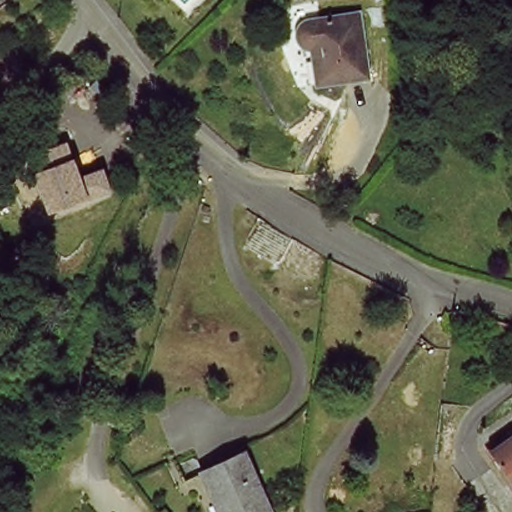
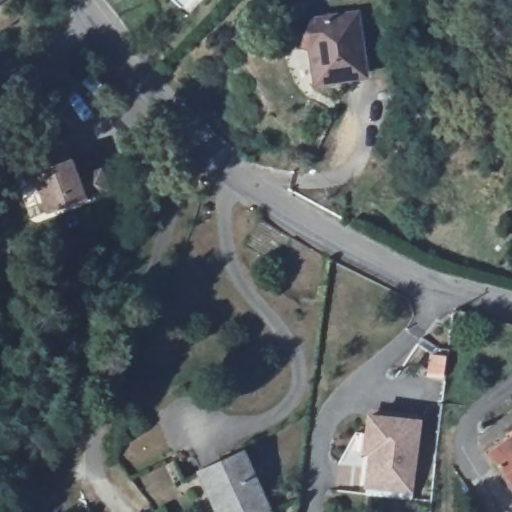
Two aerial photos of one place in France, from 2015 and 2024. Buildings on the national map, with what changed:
unchanged [(318,46),(316,46),(315,46),(315,45),(314,45),(313,45),(313,44),(312,44),(311,43),(311,42),(310,42),(309,41),(308,40),(308,39),(307,38),(307,37),(307,36),(306,35),(306,34),(306,32),(307,30),(307,28),(308,27),(308,26),(309,25),(310,25),(310,24),(311,24),(312,23),(313,22),(314,22),(315,21),(318,20),(367,14),(376,76),(327,83),(323,57),(325,57),(324,46),(318,46)]
unchanged [(102,174),(109,195),(48,218),(27,161),(65,147),(78,183),(102,174)]
new [(370,409),(420,413),(422,419),(414,494),(364,489),(368,456),(360,455),(361,451),(351,451),(353,432),(365,432),(366,414),(370,409)]
unchanged [(512,429),(512,481),(487,447),(512,429)]
unchanged [(201,471),(241,452),(268,512),(219,512),(215,501),(201,471)]

